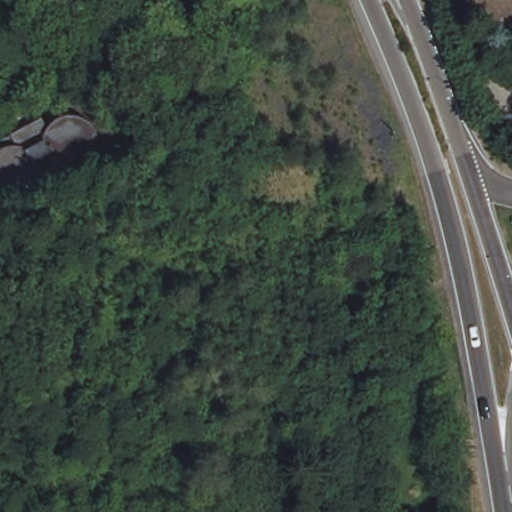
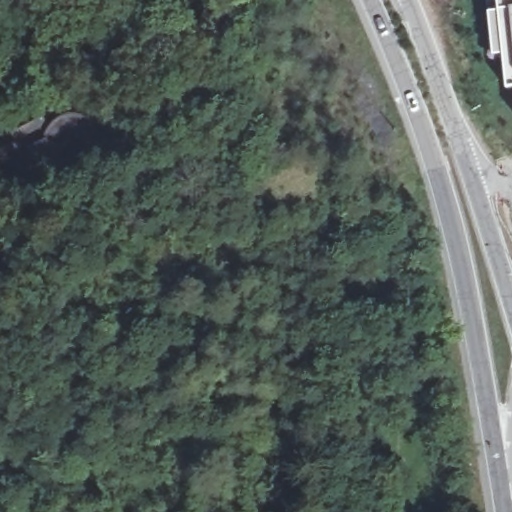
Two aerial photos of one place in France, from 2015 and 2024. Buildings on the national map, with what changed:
new [(502,54),(493,55),(489,12),(499,10),(497,1),(507,0),(512,0),(512,88),(507,88),(502,54)]

